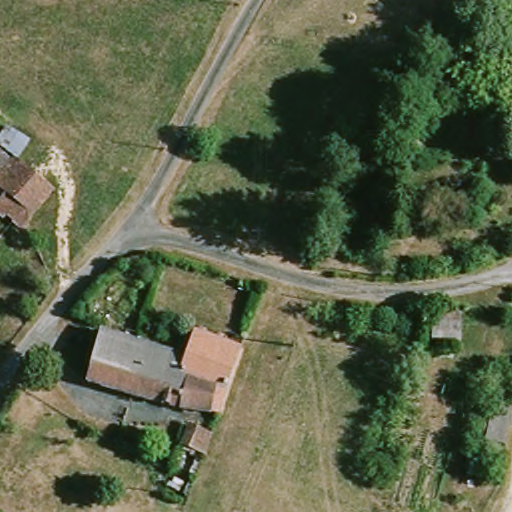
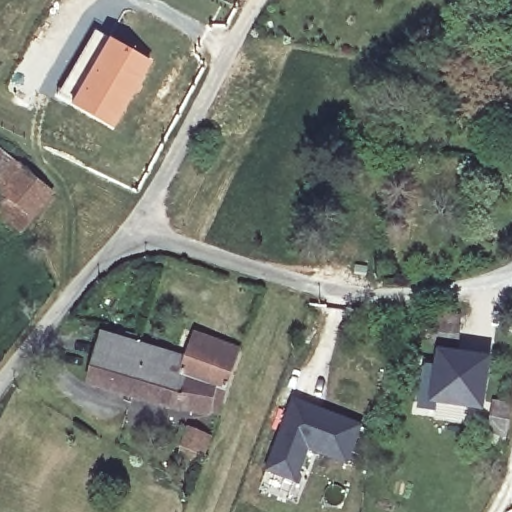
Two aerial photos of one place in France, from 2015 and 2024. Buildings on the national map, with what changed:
new [(96,30),(110,37),(72,102),(58,93),(96,30)]
new [(110,37),(151,60),(113,125),(72,102),(110,37)]
unchanged [(6,133),(30,148),(17,167),(54,196),(20,234),(7,220),(1,227),(0,225),(0,205),(1,204),(0,203),(0,141),(6,133)]
unchanged [(214,425),(110,399),(86,394),(93,365),(97,341),(187,354),(190,340),(241,346),(231,394),(225,393),(214,425)]
new [(420,365),(433,366),(436,348),(493,355),(484,413),(415,408),(420,365)]
new [(310,409),(322,414),(357,429),(343,466),(305,450),(291,483),(263,472),(291,401),(310,409)]
new [(491,402),(510,405),(505,446),(486,444),(491,402)]
unchanged [(212,442),(204,464),(185,457),(191,438),(212,442)]

